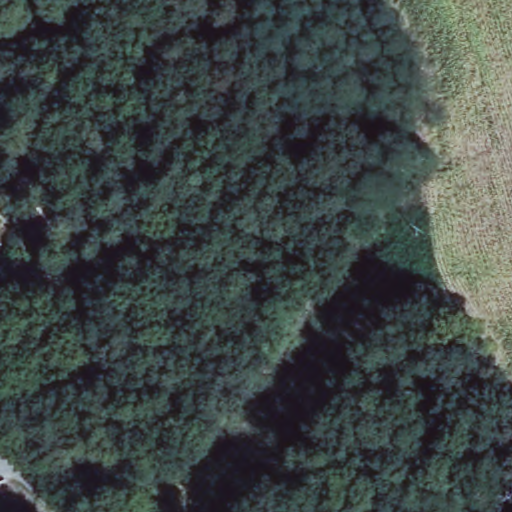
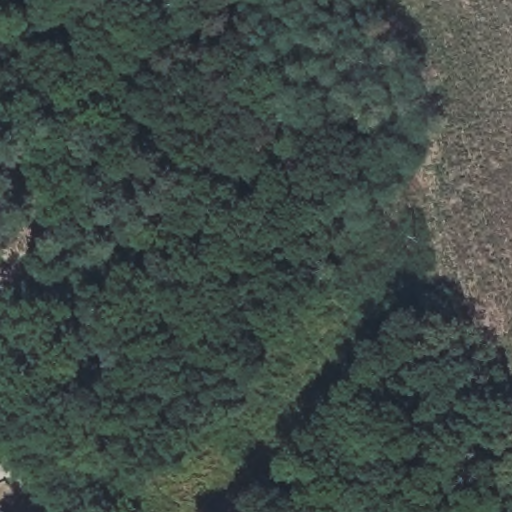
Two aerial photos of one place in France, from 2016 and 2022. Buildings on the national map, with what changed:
unchanged [(0,376),(0,350),(12,368),(0,376)]

